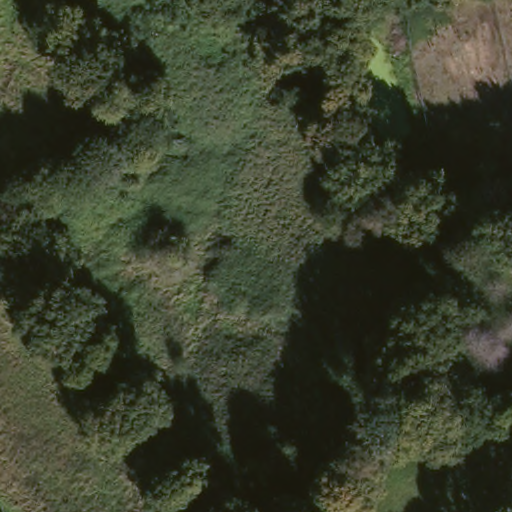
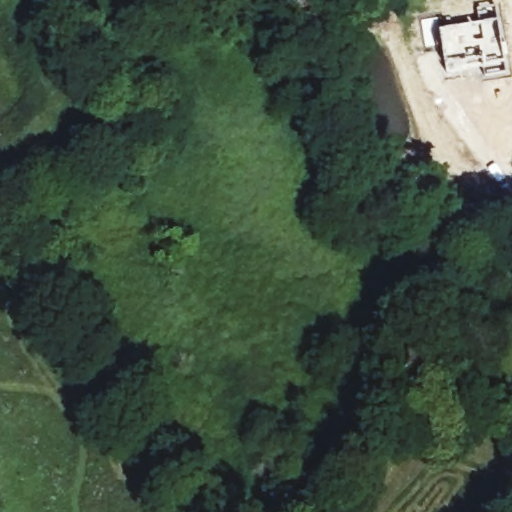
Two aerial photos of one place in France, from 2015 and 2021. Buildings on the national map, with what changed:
new [(479,22),(477,7),(496,4),(505,72),(482,74),(481,59),(465,60),(466,68),(444,70),(439,27),(479,22)]

